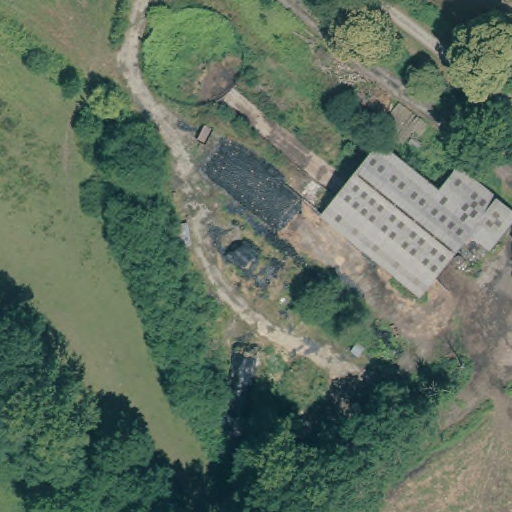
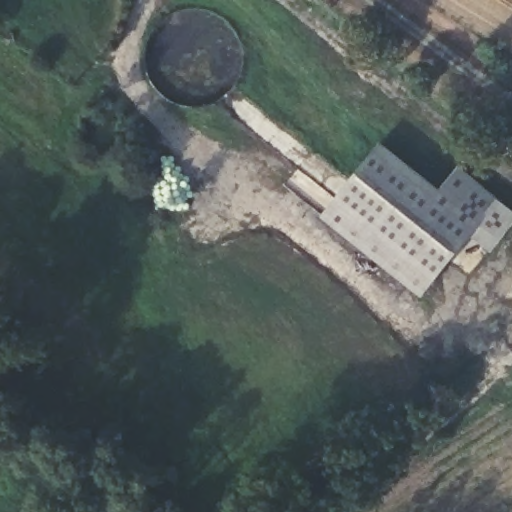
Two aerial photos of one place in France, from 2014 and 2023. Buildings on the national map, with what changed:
unchanged [(436,192),(476,224),(467,235),(422,297),(321,220),(377,146),(436,192)]
unchanged [(476,224),(436,192),(454,170),(512,213),(512,220),(488,251),(467,235),(476,224)]

